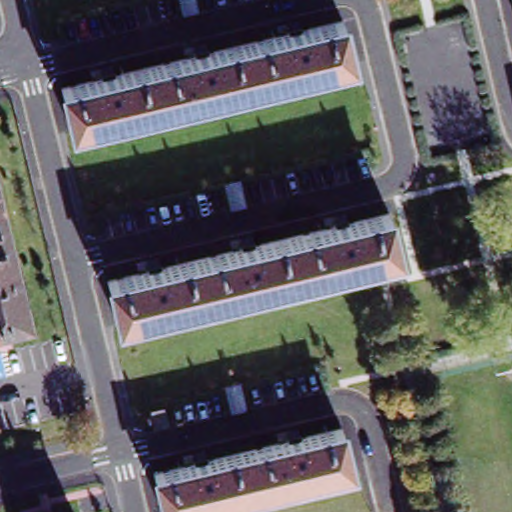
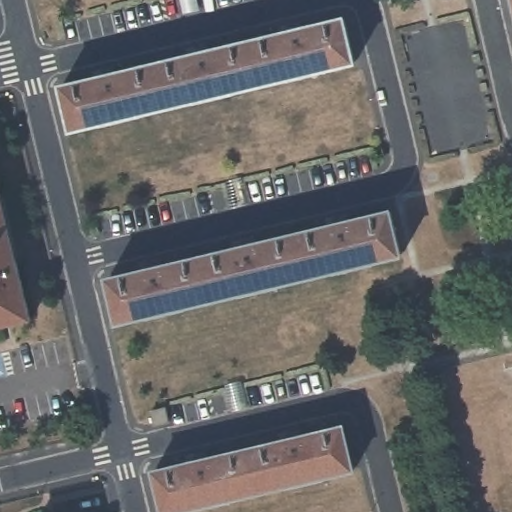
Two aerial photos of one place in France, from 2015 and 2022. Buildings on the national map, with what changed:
unchanged [(62,89),(343,21),(354,64),(72,132),(62,89)]
unchanged [(0,328),(0,194),(30,321),(0,328)]
unchanged [(109,282),(390,214),(391,214),(401,257),(119,325),(109,282)]
unchanged [(167,419),(154,422),(150,408),(164,404),(167,419)]
unchanged [(342,428),(353,472),(184,512),(164,512),(155,473),(342,428)]

